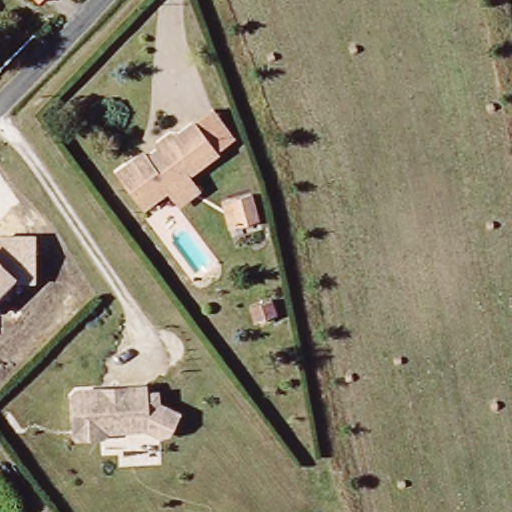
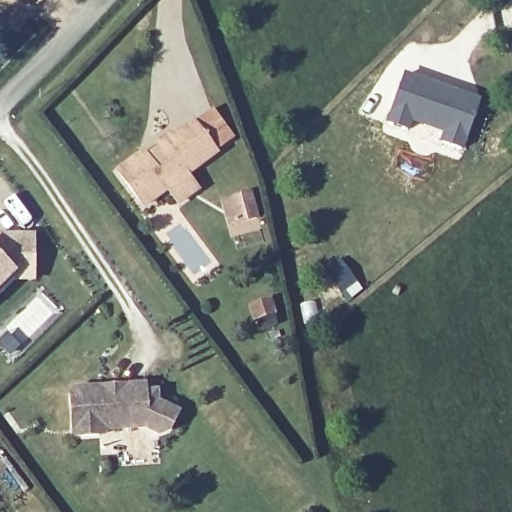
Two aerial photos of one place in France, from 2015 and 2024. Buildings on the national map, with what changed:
unchanged [(40,3),(37,0),(42,0),(40,3)]
new [(406,71),(425,77),(481,99),(464,150),(438,143),(441,135),(417,125),(410,132),(385,123),(406,71)]
unchanged [(180,204),(169,189),(142,209),(115,174),(140,155),(145,158),(155,150),(150,145),(165,134),(170,139),(192,122),(216,152),(183,177),(195,192),(180,204)]
unchanged [(216,202),(246,194),(255,219),(221,226),(216,202)]
unchanged [(35,234),(35,283),(14,279),(0,292),(0,234),(35,234)]
unchanged [(101,431),(80,432),(76,428),(75,390),(79,385),(147,382),(147,389),(160,389),(160,400),(180,410),(171,427),(161,430),(149,424),(107,425),(101,431)]

